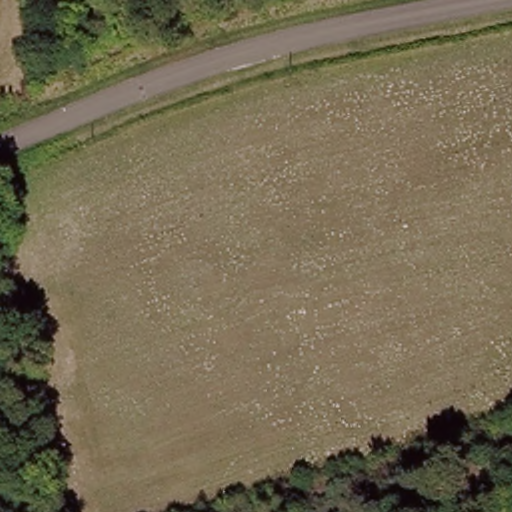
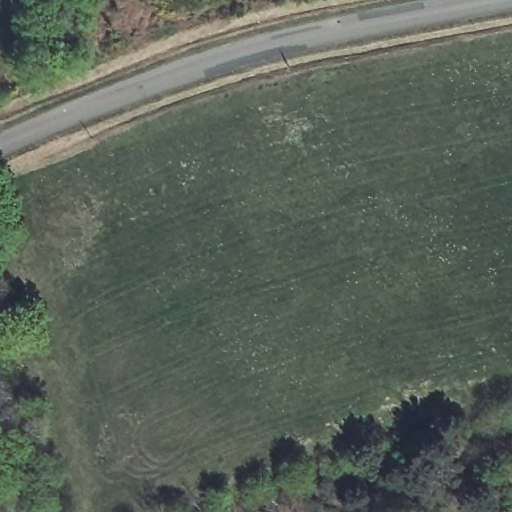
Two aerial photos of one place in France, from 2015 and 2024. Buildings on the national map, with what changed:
[]

